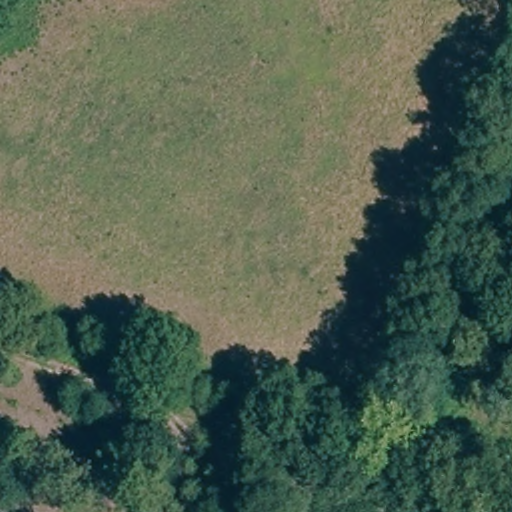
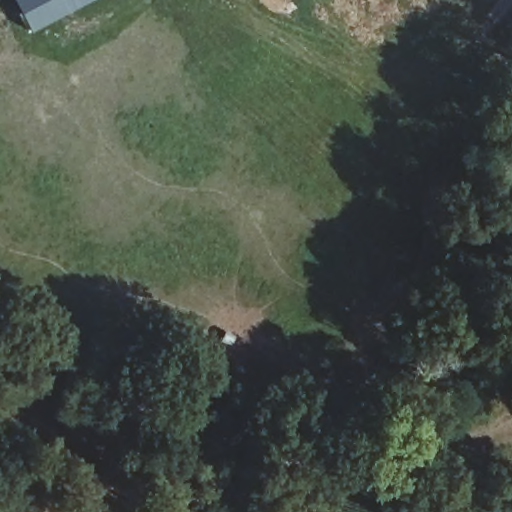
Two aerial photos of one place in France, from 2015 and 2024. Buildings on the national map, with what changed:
new [(31,32),(13,0),(92,0),(31,32)]

